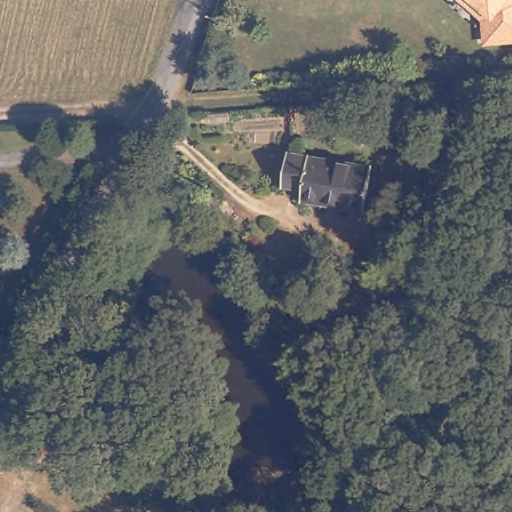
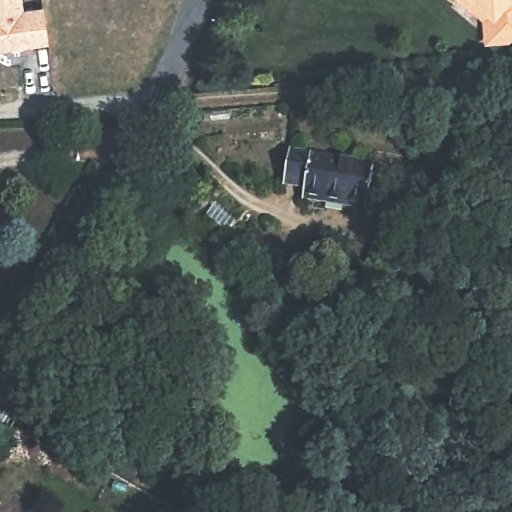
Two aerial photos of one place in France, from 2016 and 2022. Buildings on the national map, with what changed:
new [(22,0),(23,10),(42,7),(44,15),(48,44),(0,51),(0,0),(22,0)]
unchanged [(485,15),(490,10),(478,0),(512,0),(512,34),(486,36),(485,15)]
unchanged [(425,212),(425,187),(420,132),(441,130),(445,187),(447,212),(425,212)]
unchanged [(302,204),(303,192),(283,192),(286,158),(369,164),(366,207),(302,204)]

